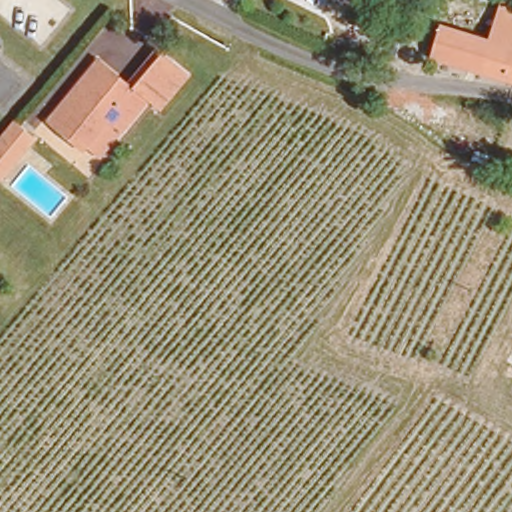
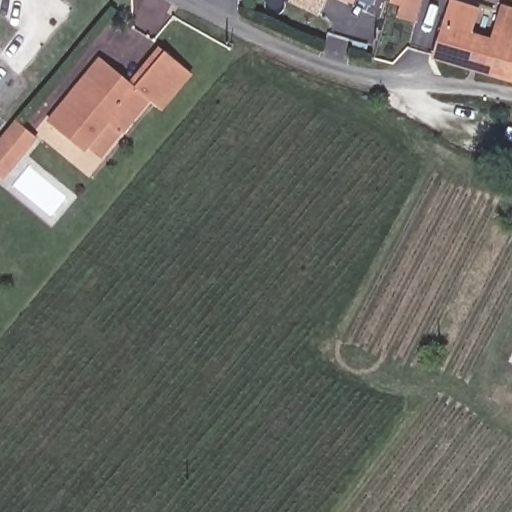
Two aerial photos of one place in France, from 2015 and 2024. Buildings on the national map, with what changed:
unchanged [(354,0),(350,7),(335,0),(354,0)]
new [(422,0),(417,22),(398,17),(402,5),(392,2),(393,0),(422,0)]
unchanged [(453,0),(480,0),(512,10),(512,83),(432,60),(453,0)]
unchanged [(86,144),(82,149),(48,122),(87,71),(97,57),(132,84),(157,50),(187,74),(161,109),(146,98),(122,130),(102,157),(86,144)]
unchanged [(17,117),(40,136),(2,181),(0,178),(0,137),(17,117)]

